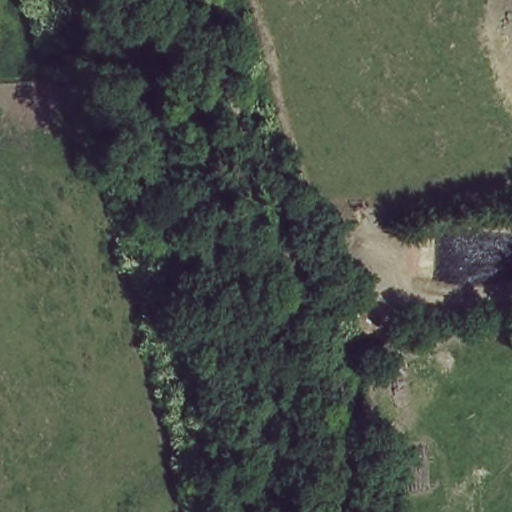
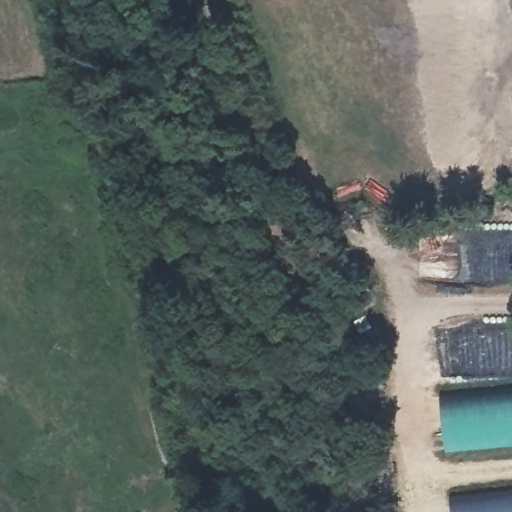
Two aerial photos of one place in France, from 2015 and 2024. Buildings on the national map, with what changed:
new [(512,387),(512,445),(445,451),(441,394),(512,387)]
new [(494,511),(493,490),(512,488),(512,512),(493,512),(494,511)]

